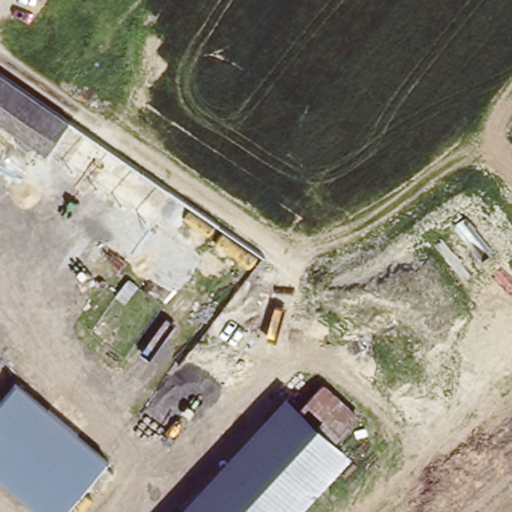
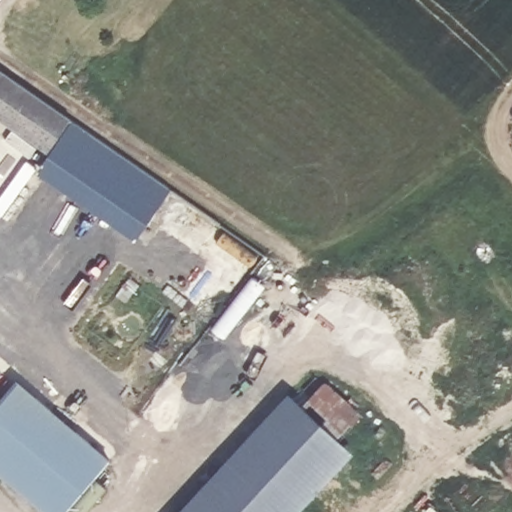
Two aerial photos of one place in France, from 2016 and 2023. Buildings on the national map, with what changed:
unchanged [(50,155),(0,122),(0,70),(74,118),(50,155)]
new [(50,155),(72,121),(172,189),(135,241),(37,174),(50,155)]
unchanged [(0,397),(15,380),(105,461),(59,512),(42,512),(0,476),(0,397)]
unchanged [(348,459),(297,411),(321,388),(370,435),(348,459)]
unchanged [(298,512),(179,512),(285,399),(297,411),(348,459),(298,512)]

